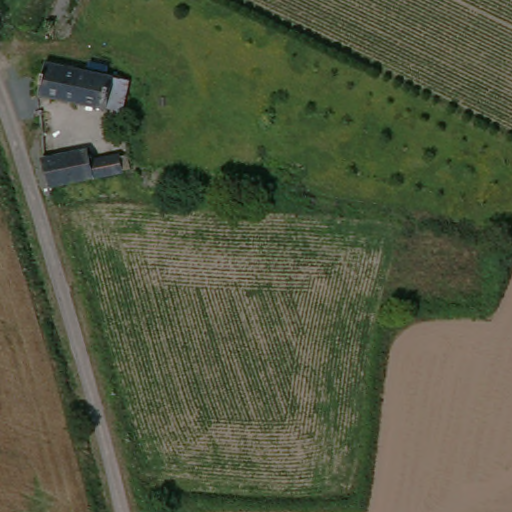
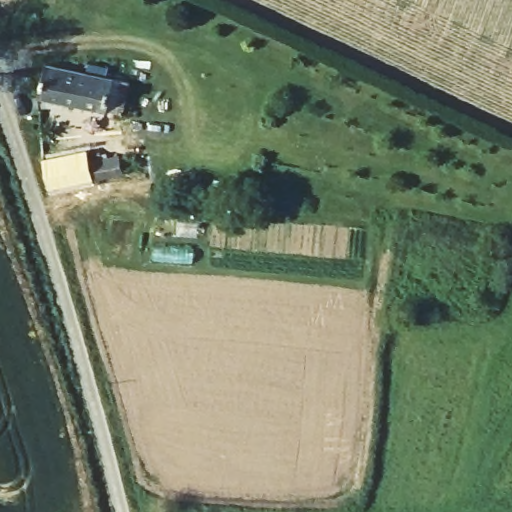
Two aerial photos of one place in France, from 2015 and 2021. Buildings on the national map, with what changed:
unchanged [(38,92),(47,58),(74,65),(79,48),(118,58),(124,60),(121,76),(130,78),(121,112),(38,92)]
unchanged [(88,147),(92,160),(134,147),(141,163),(131,167),(132,169),(112,176),(81,186),(56,194),(45,160),(88,147)]

